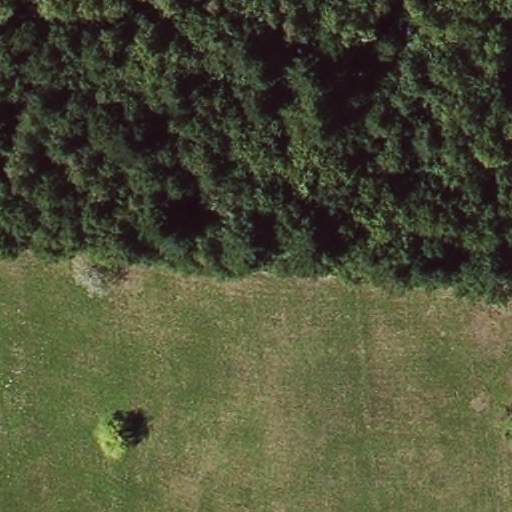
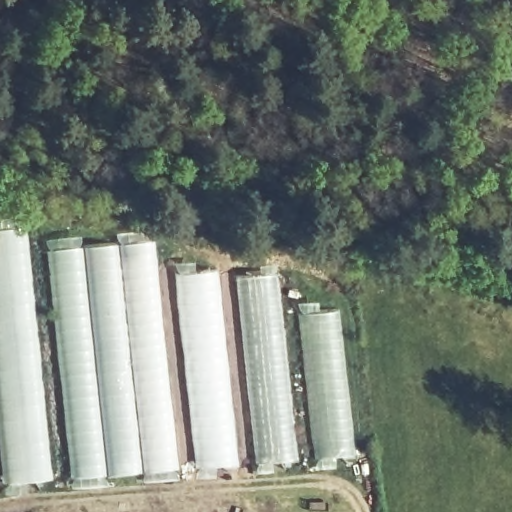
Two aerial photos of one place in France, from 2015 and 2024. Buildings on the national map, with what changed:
new [(0,485),(0,231),(25,229),(45,481),(0,485)]
new [(74,479),(52,252),(150,243),(176,470),(74,479)]
new [(200,468),(178,275),(216,271),(237,465),(200,468)]
new [(272,275),(291,462),(258,464),(239,280),(272,275)]
new [(332,313),(349,457),(318,460),(304,315),(332,313)]

